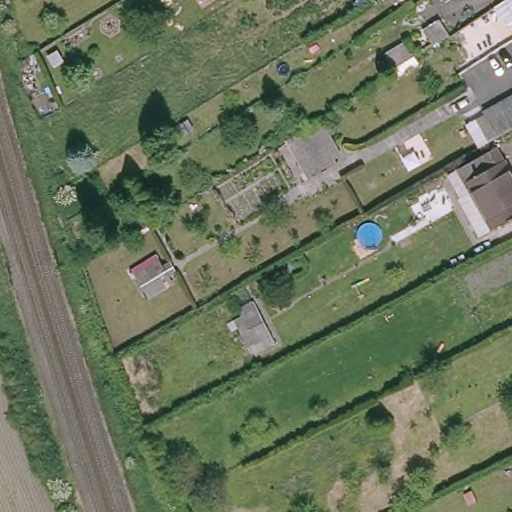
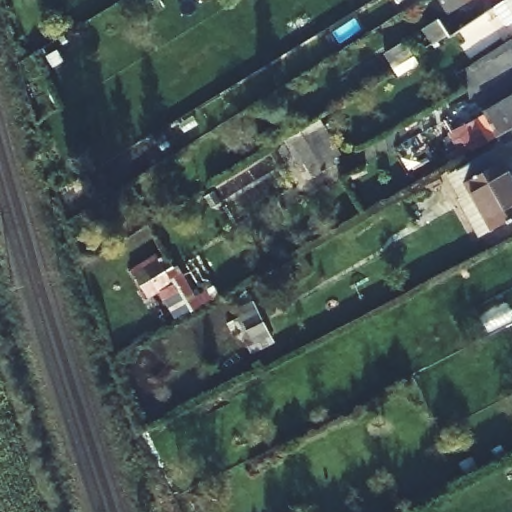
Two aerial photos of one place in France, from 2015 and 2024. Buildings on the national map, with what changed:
unchanged [(462,30),(452,13),(457,10),(460,14),(481,0),(485,0),(497,0),(498,0),(503,0),(505,3),(462,30)]
unchanged [(423,35),(440,24),(447,35),(430,45),(423,35)]
unchanged [(383,55),(402,44),(411,57),(392,69),(383,55)]
unchanged [(512,98),(512,130),(500,137),(486,113),(500,105),(512,98)]
unchanged [(327,117),(348,153),(307,180),(283,142),(327,117)]
unchanged [(512,219),(485,233),(485,232),(483,233),(479,225),(480,224),(465,194),(467,193),(455,171),(465,165),(503,144),(512,160),(512,219)]
unchanged [(155,256),(161,265),(172,259),(180,274),(169,279),(172,285),(147,297),(132,270),(155,256)]
unchanged [(242,337),(233,320),(255,309),(273,342),(252,354),(242,337)]

